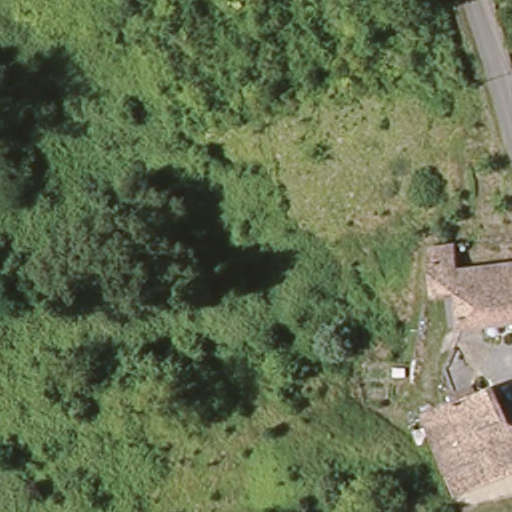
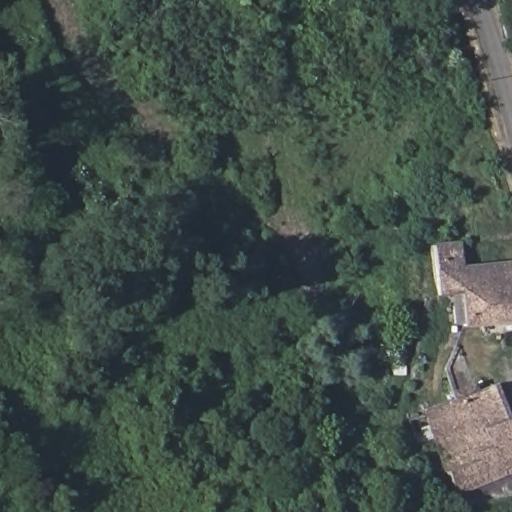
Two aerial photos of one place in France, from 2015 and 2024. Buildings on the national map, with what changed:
unchanged [(476,240),(477,242),(479,265),(512,262),(512,319),(467,325),(467,321),(455,322),(454,306),(466,305),(465,292),(441,294),(435,243),(476,240)]
unchanged [(493,387),(512,435),(512,474),(459,496),(427,412),(493,387)]

